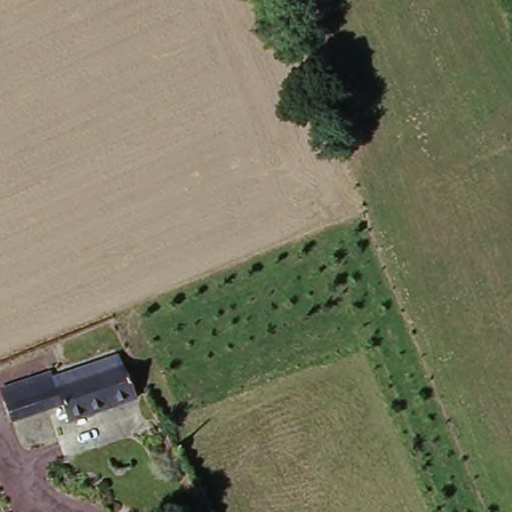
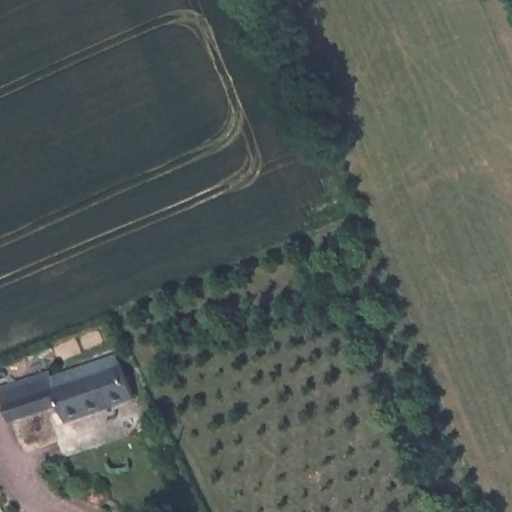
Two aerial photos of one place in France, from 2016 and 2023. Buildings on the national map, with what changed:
unchanged [(135,392),(67,419),(58,403),(12,422),(1,396),(0,395),(0,389),(46,369),(48,376),(116,350),(135,392)]

